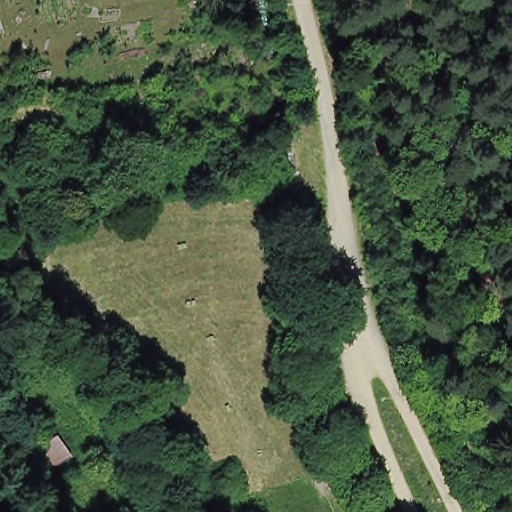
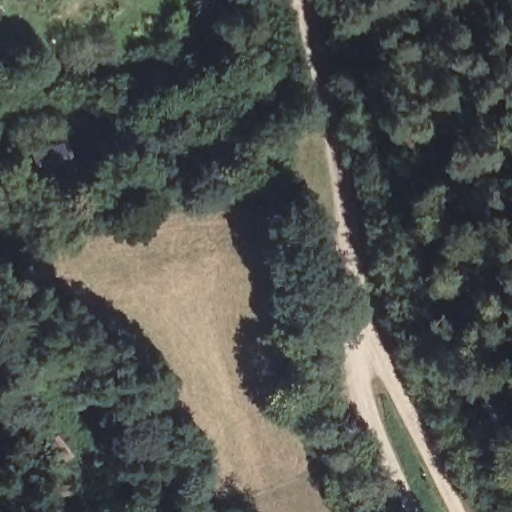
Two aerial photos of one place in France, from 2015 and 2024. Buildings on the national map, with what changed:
unchanged [(56,172),(44,175),(45,179),(37,180),(30,153),(49,148),(56,172)]
unchanged [(44,447),(55,438),(70,458),(59,466),(44,447)]

